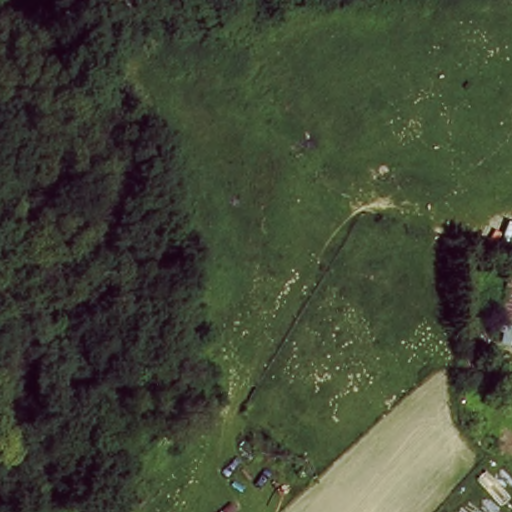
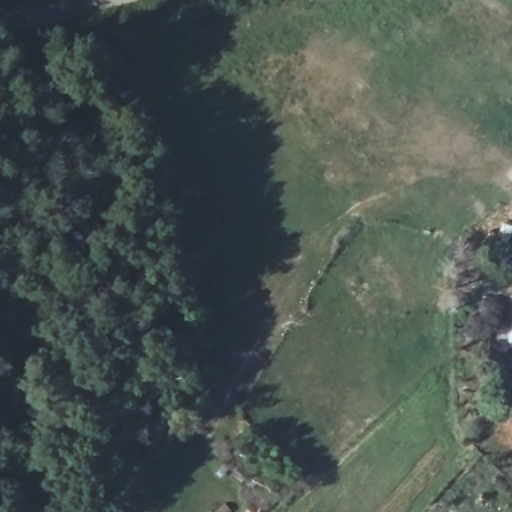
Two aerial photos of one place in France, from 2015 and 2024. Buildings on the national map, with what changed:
unchanged [(494,342),(500,284),(510,284),(512,278),(512,348),(494,342)]

